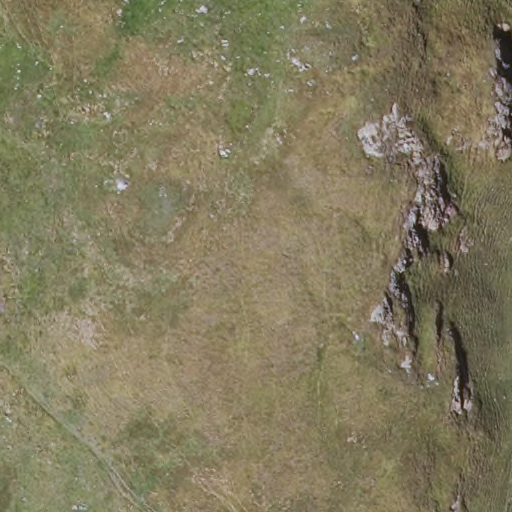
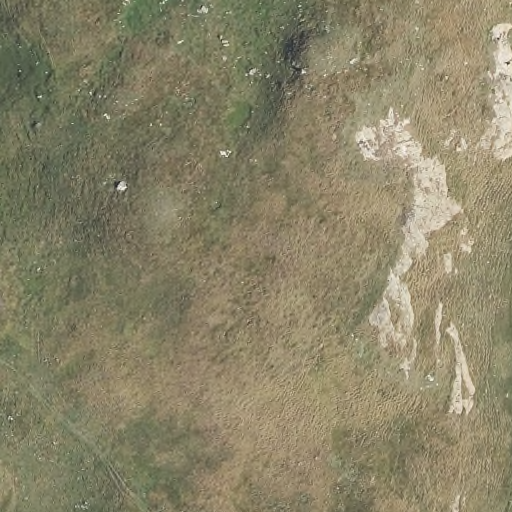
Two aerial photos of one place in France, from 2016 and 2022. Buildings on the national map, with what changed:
[]

